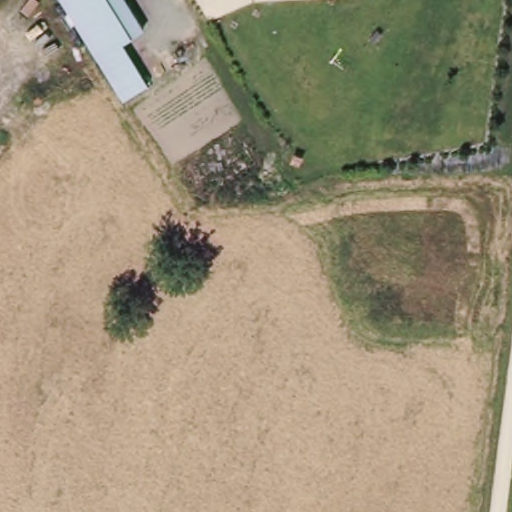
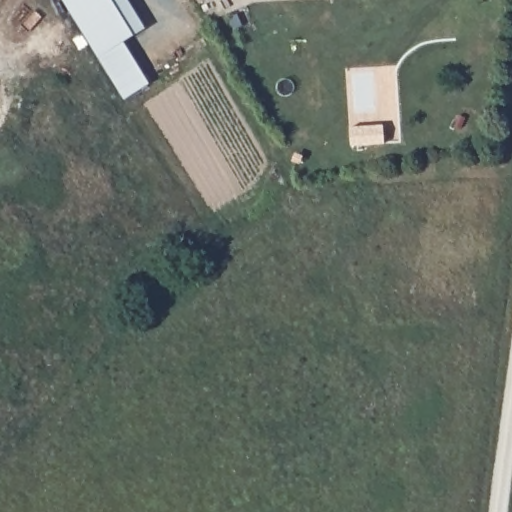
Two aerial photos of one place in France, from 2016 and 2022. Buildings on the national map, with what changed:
unchanged [(104,56),(104,57),(69,0),(116,0),(138,37),(104,56)]

